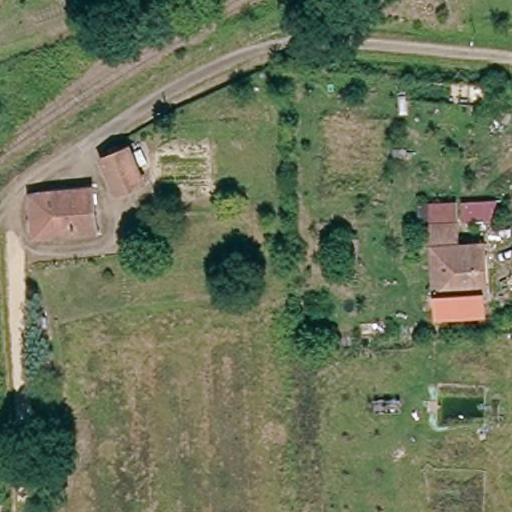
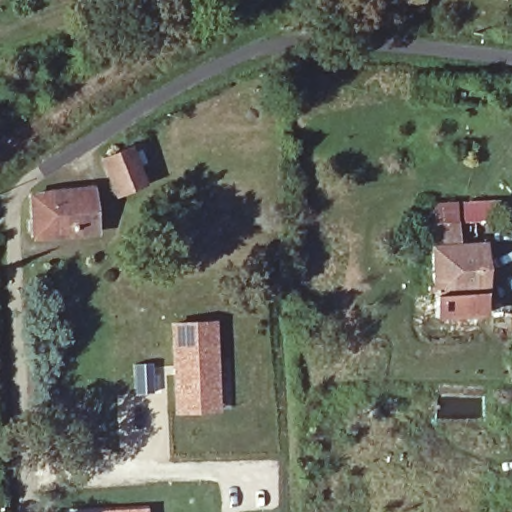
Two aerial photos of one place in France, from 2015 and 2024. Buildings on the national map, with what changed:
unchanged [(134,150),(150,186),(123,198),(107,162),(134,150)]
unchanged [(32,192),(93,187),(96,231),(35,236),(32,192)]
unchanged [(488,305),(437,308),(433,201),(459,199),(461,241),(486,240),(488,305)]
new [(174,413),(170,322),(217,320),(221,412),(174,413)]
unchanged [(2,506),(3,512),(0,512),(0,506),(2,506)]
new [(149,506),(149,512),(63,512),(63,510),(149,506)]

